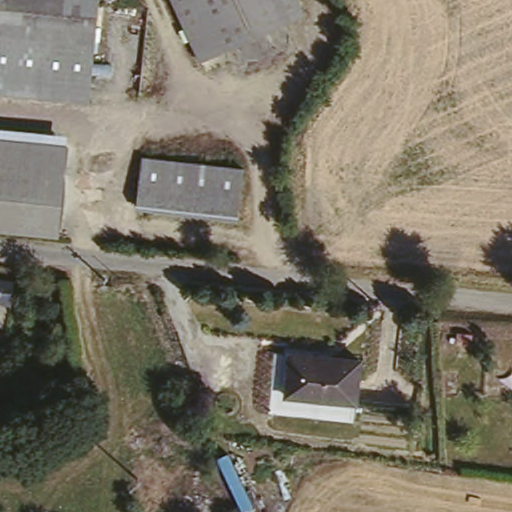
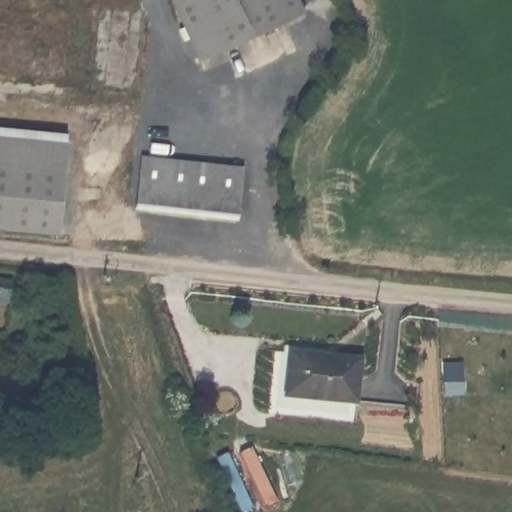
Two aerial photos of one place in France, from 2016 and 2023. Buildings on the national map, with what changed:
demolished [(96,50),(89,100),(0,89),(0,0),(150,0),(144,57),(96,50)]
unchanged [(200,58),(175,0),(300,0),(305,12),(200,58)]
unchanged [(59,146),(50,230),(0,228),(0,141),(59,146)]
unchanged [(245,166),(241,217),(141,206),(145,155),(245,166)]
unchanged [(0,301),(0,280),(12,281),(11,302),(0,301)]
unchanged [(289,390),(291,348),(362,352),(360,394),(289,390)]

